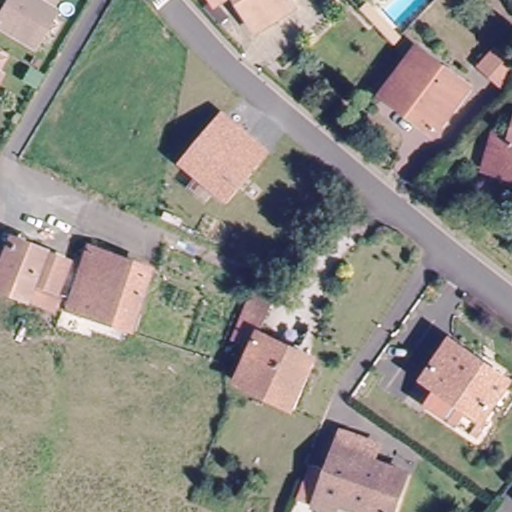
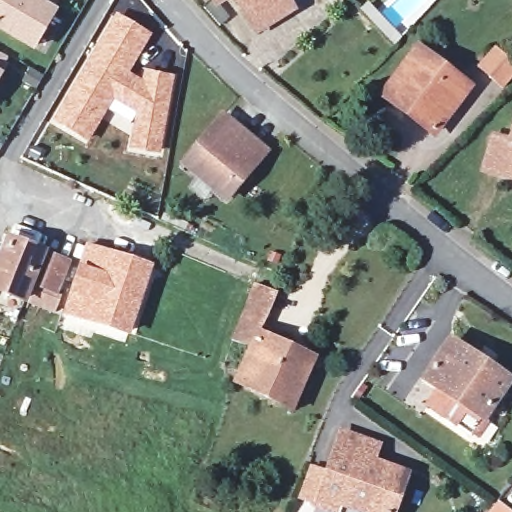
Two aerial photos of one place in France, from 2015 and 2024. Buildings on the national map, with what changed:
unchanged [(42,48),(38,46),(29,41),(4,25),(15,6),(5,1),(6,0),(66,0),(60,12),(62,13),(42,48)]
unchanged [(216,4),(214,0),(223,0),(216,4)]
unchanged [(292,9),(256,31),(237,0),(287,0),(292,9)]
new [(114,12),(152,33),(130,72),(140,77),(144,68),(175,75),(160,153),(127,147),(132,124),(108,110),(88,142),(50,121),(114,12)]
unchanged [(478,67),(495,48),(512,63),(512,76),(501,88),(478,67)]
unchanged [(418,50),(468,87),(434,133),(384,95),(418,50)]
unchanged [(0,69),(0,52),(7,56),(0,69)]
unchanged [(0,75),(0,71),(2,72),(0,75)]
unchanged [(185,166),(224,118),(245,135),(265,151),(255,163),(226,198),(185,166)]
unchanged [(484,170),(494,136),(512,142),(512,179),(484,170)]
unchanged [(55,307),(47,305),(24,295),(0,286),(0,259),(10,234),(66,258),(67,258),(55,287),(30,277),(30,279),(54,289),(61,292),(55,306),(55,307)]
unchanged [(147,271),(147,272),(127,332),(66,313),(89,250),(147,271)]
unchanged [(277,287),(260,331),(258,330),(251,345),(232,335),(255,278),(273,286),(277,287)]
unchanged [(260,331),(314,358),(291,404),(235,377),(251,345),(258,330),(260,331)]
unchanged [(445,388),(430,379),(455,342),(512,381),(512,382),(487,418),(445,388)]
unchanged [(476,435),(432,406),(445,388),(487,418),(476,435)]
unchanged [(321,487),(342,427),(366,436),(379,440),(373,457),(408,469),(393,512),(370,512),(370,510),(341,499),(340,496),(335,509),(315,503),(321,487)]

